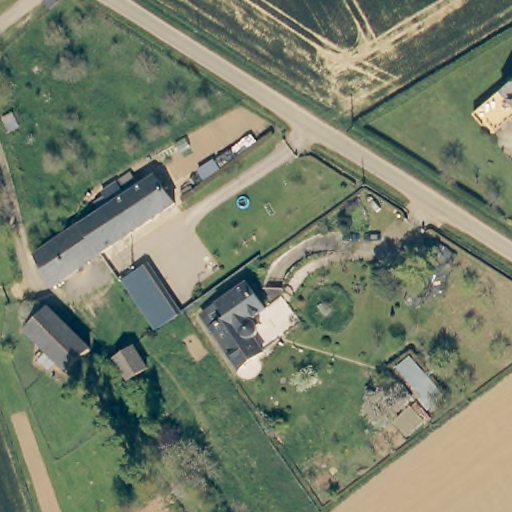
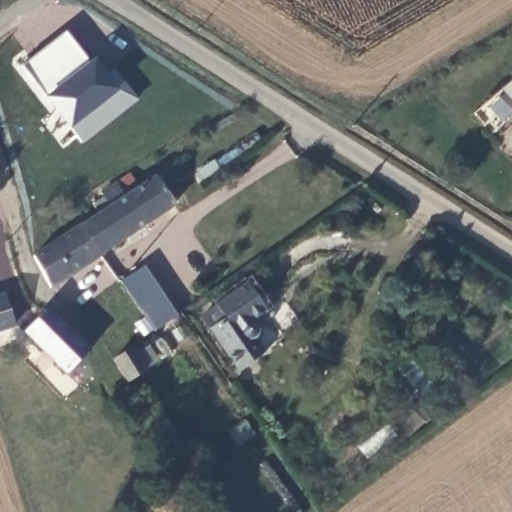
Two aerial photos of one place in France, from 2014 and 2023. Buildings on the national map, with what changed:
new [(89,64),(95,59),(108,74),(116,69),(138,101),(84,145),(69,129),(44,97),(46,96),(21,66),(65,32),(89,64)]
unchanged [(512,77),(512,115),(497,129),(490,120),(485,123),(475,111),(502,87),(512,77)]
unchanged [(100,194),(115,185),(123,197),(153,178),(175,211),(103,257),(81,225),(108,207),(100,194)]
unchanged [(53,289),(35,262),(33,255),(81,225),(103,257),(53,289)]
demolished [(141,261),(156,283),(135,298),(121,275),(141,261)]
new [(147,263),(181,314),(155,331),(121,282),(147,263)]
unchanged [(247,285),(261,303),(217,339),(201,317),(247,285)]
unchanged [(265,309),(251,319),(259,332),(254,336),(263,350),(239,369),(217,339),(261,303),(265,309)]
unchanged [(40,307),(86,337),(100,365),(84,387),(21,332),(40,307)]
unchanged [(137,336),(151,356),(129,371),(118,352),(137,336)]

